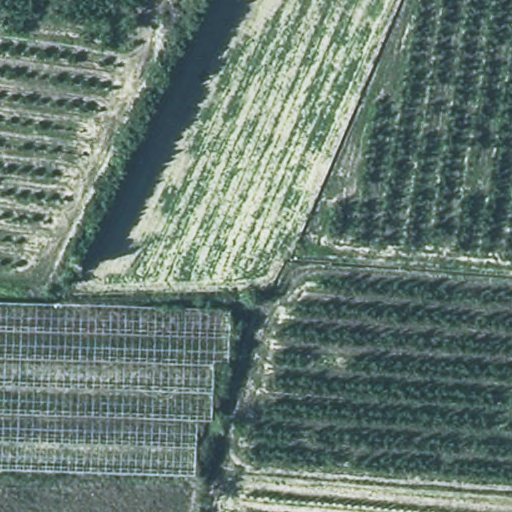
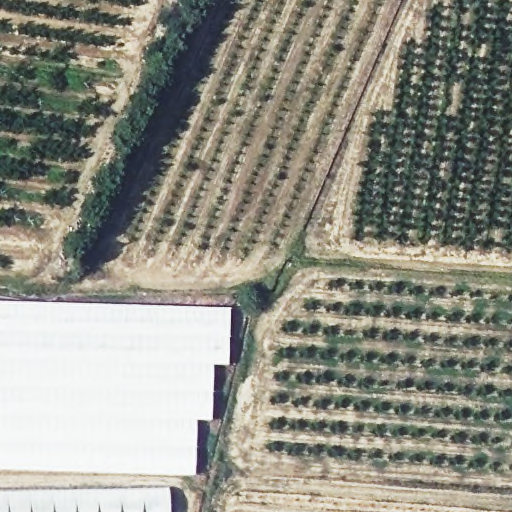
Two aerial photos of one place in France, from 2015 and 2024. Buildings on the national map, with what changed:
unchanged [(227,362),(211,362),(210,417),(193,420),(192,476),(0,468),(0,302),(229,308),(227,362)]
new [(169,512),(0,512),(0,489),(168,487),(169,512)]

